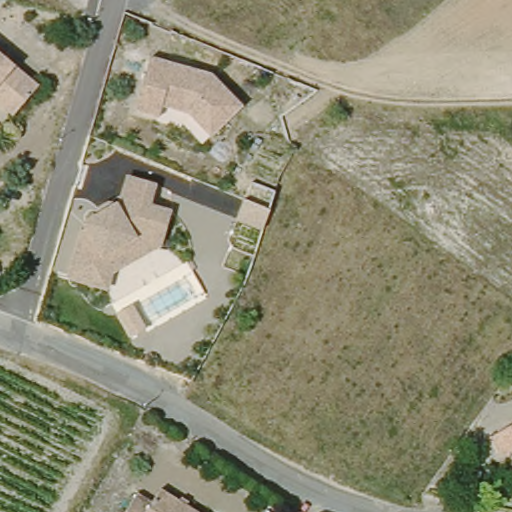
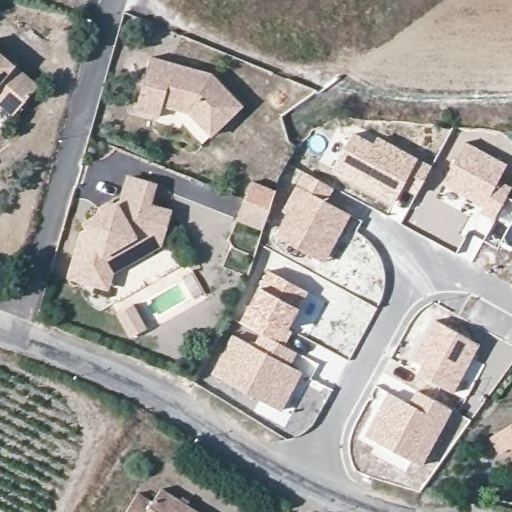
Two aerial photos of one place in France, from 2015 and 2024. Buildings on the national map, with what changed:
unchanged [(133,112),(148,59),(208,77),(236,103),(210,137),(184,116),(159,108),(156,120),(133,112)]
unchanged [(30,84),(8,116),(0,110),(0,61),(30,84)]
new [(354,132),(373,142),(376,135),(432,165),(415,196),(403,190),(391,210),(333,172),(354,132)]
new [(466,141),(508,164),(499,179),(512,187),(494,220),(479,211),(481,208),(441,184),(466,141)]
new [(284,214),(281,212),(301,171),(334,187),(328,201),(351,214),(326,263),(274,237),(284,214)]
new [(256,179),(283,189),(276,206),(269,224),(243,215),(250,197),(256,179)]
unchanged [(106,292),(90,287),(68,280),(79,236),(85,232),(82,226),(94,218),(103,221),(113,215),(115,208),(119,206),(126,180),(153,187),(147,207),(168,213),(158,247),(113,272),(106,292)]
new [(512,247),(499,241),(512,218),(512,247)]
new [(253,343),(259,333),(238,322),(266,270),(309,291),(291,328),(285,345),(298,352),(291,365),(303,372),(281,412),(209,374),(232,333),(253,343)]
new [(129,303),(143,327),(131,335),(116,311),(129,303)]
new [(433,317),(479,343),(453,393),(416,373),(419,366),(409,360),(433,317)]
new [(388,391),(409,402),(417,390),(452,409),(421,465),(364,435),(388,391)]
unchanged [(494,451),(486,435),(512,420),(512,456),(505,445),(494,451)]
unchanged [(131,496),(149,506),(158,492),(197,512),(123,512),(131,496)]

